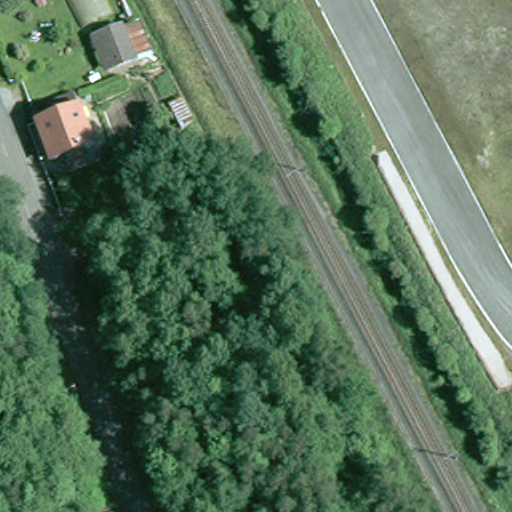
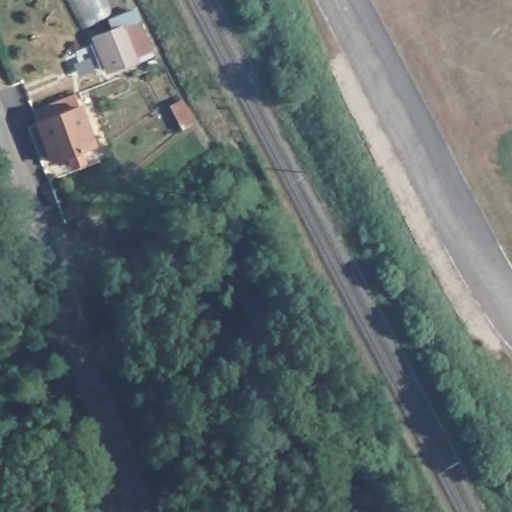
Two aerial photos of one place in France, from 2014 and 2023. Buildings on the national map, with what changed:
unchanged [(117,29),(133,23),(146,56),(130,63),(129,61),(119,64),(108,37),(118,33),(117,29)]
unchanged [(101,151),(60,166),(42,114),(83,99),(101,151)]

